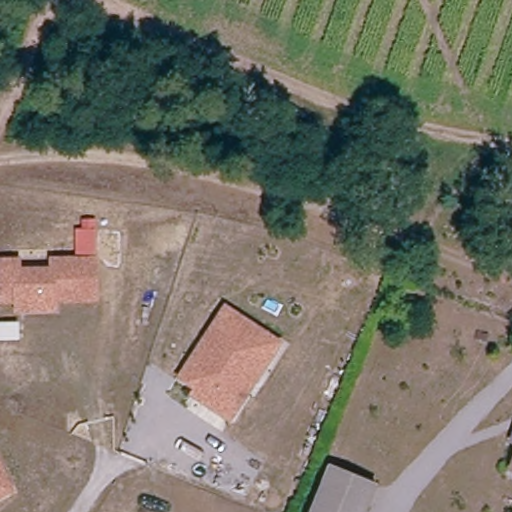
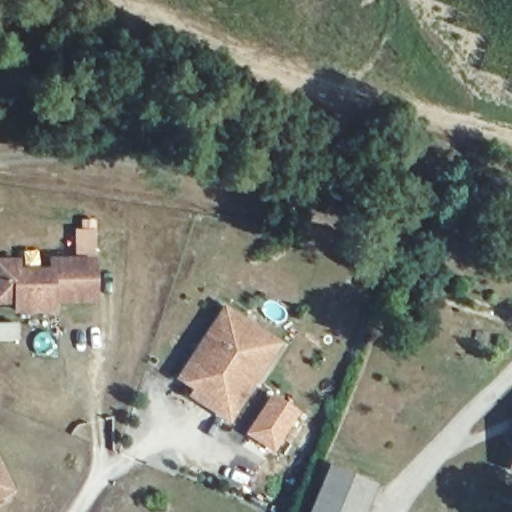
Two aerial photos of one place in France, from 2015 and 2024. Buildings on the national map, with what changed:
unchanged [(2,260),(19,259),(20,270),(55,267),(54,256),(96,255),(98,294),(58,296),(58,305),(22,307),(21,298),(5,299),(2,260)]
unchanged [(196,386),(193,384),(180,375),(226,306),(227,307),(244,319),(279,343),(254,380),(228,418),(202,400),(191,392),(196,386)]
new [(273,393),(301,412),(274,453),(246,434),(273,393)]
unchanged [(510,431),(512,432),(512,453),(501,449),(510,431)]
unchanged [(11,486),(0,492),(0,464),(11,486)]
unchanged [(372,490),(363,512),(311,512),(326,472),(372,490)]

